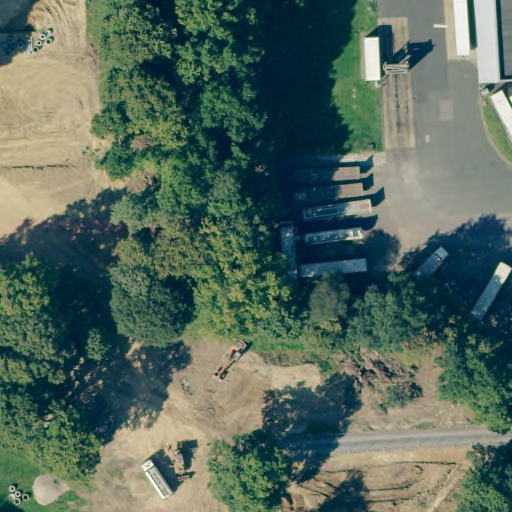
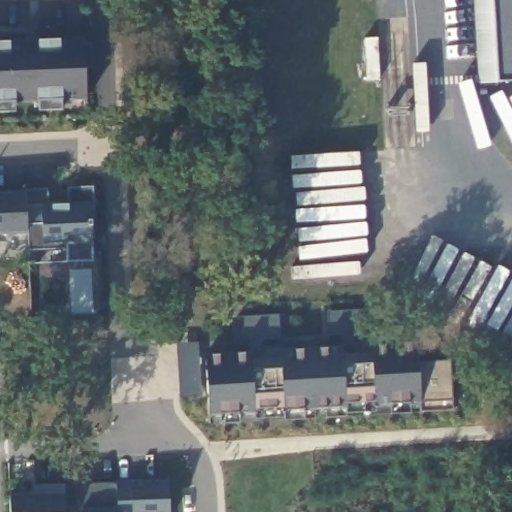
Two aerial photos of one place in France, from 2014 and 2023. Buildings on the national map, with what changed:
unchanged [(490,0),(512,0),(512,78),(495,79),(494,58),(490,0)]
new [(63,101),(64,112),(37,112),(36,103),(16,104),(16,112),(0,113),(0,42),(85,39),(87,100),(63,101)]
new [(49,189),(50,205),(70,204),(69,189),(93,187),(94,204),(91,204),(92,244),(66,245),(66,250),(28,250),(28,232),(0,234),(0,192),(26,190),(49,189)]
new [(238,340),(237,316),(277,314),(279,338),(260,340),(260,347),(279,346),(279,350),(342,347),(341,335),(329,335),(328,311),(372,308),(373,333),(354,334),(355,341),(373,340),(374,345),(418,342),(419,362),(452,360),(454,411),(421,413),(421,403),(376,405),(375,402),(347,404),(347,407),(284,410),(284,407),(255,409),(255,412),(209,415),(206,355),(248,352),(247,340),(238,340)]
new [(189,342),(192,396),(171,398),(168,344),(189,342)]
new [(116,508),(116,484),(169,480),(171,512),(117,512),(116,508)]
new [(11,495),(34,493),(33,485),(64,484),(65,495),(65,512),(12,512),(11,495)]
unchanged [(116,484),(116,508),(117,512),(83,512),(83,509),(81,485),(116,484)]

